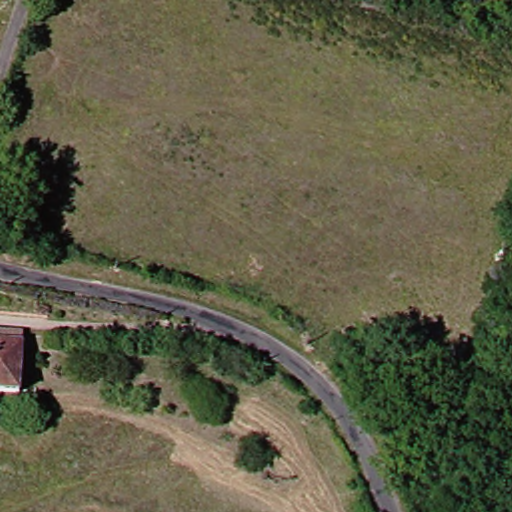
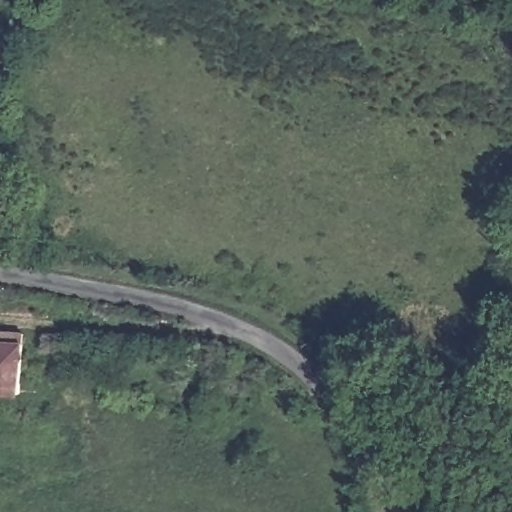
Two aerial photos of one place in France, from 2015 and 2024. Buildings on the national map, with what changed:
unchanged [(13,396),(0,394),(0,335),(19,338),(13,396)]

